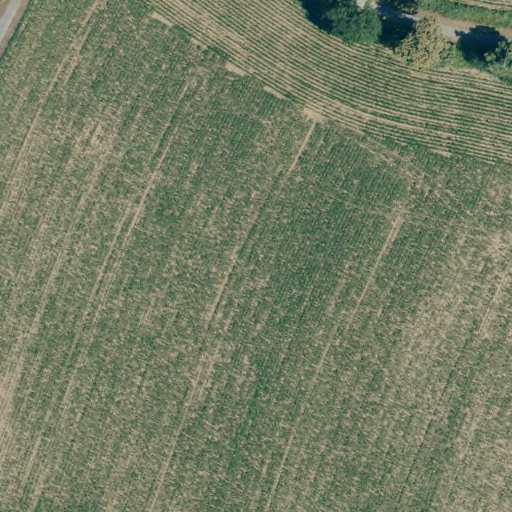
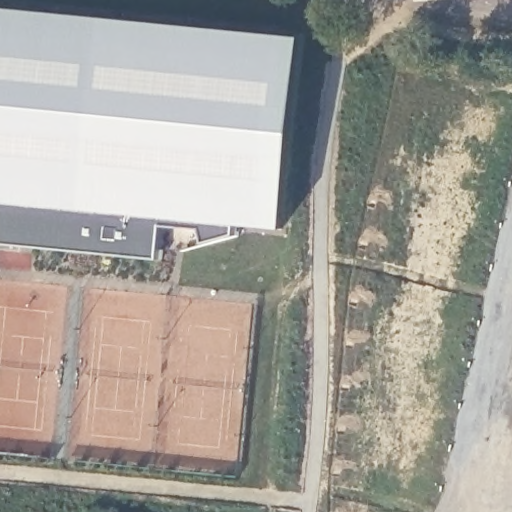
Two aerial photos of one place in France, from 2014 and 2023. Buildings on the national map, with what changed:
new [(304,39),(287,229),(236,225),(238,237),(209,244),(162,254),(163,260),(0,243),(1,232),(0,232),(0,8),(304,39)]

